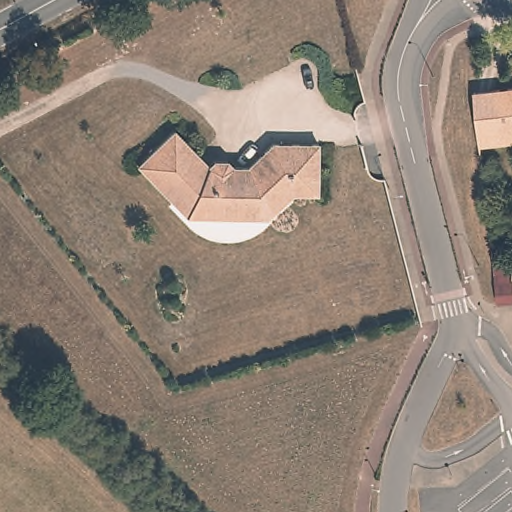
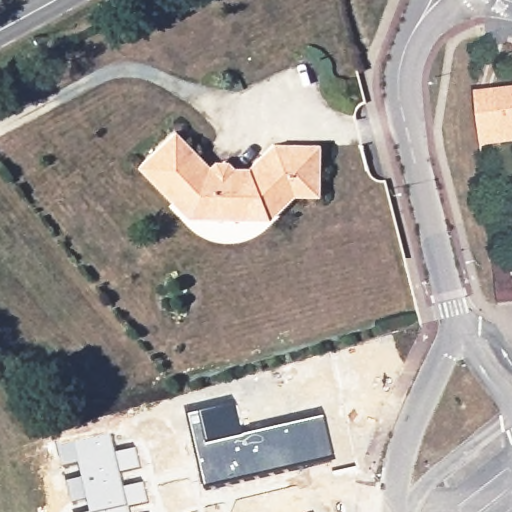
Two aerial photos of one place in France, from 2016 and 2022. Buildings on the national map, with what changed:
unchanged [(480,142),(474,87),(512,83),(512,138),(503,139),(480,142)]
unchanged [(138,167),(174,132),(208,167),(248,167),(272,144),(318,145),(317,196),(293,195),(282,205),(267,219),(248,218),(247,219),(206,217),(186,217),(172,203),(138,167)]
unchanged [(497,305),(494,272),(510,271),(512,285),(512,303),(497,305)]
new [(235,402),(245,433),(325,416),(336,461),(203,489),(188,416),(235,402)]
new [(113,434),(116,448),(137,447),(143,470),(121,472),(124,486),(144,482),(147,504),(133,506),(133,512),(85,512),(89,511),(86,502),(73,506),(67,478),(81,476),(79,463),(62,466),(56,445),(113,434)]

